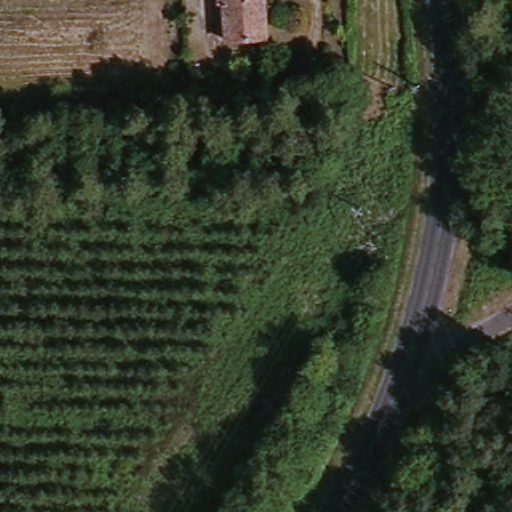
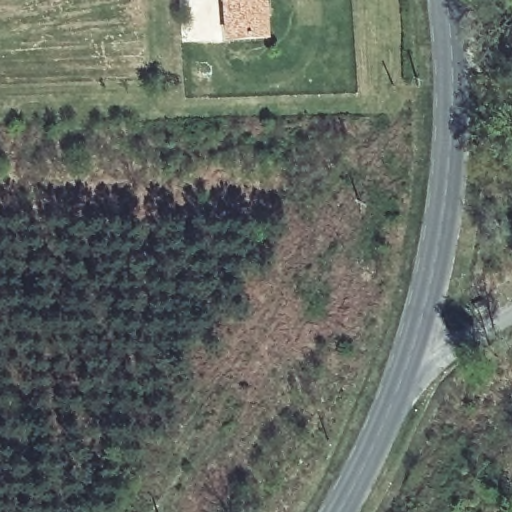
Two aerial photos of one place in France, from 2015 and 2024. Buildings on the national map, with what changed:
unchanged [(225,39),(223,0),(261,0),(262,38),(225,39)]

